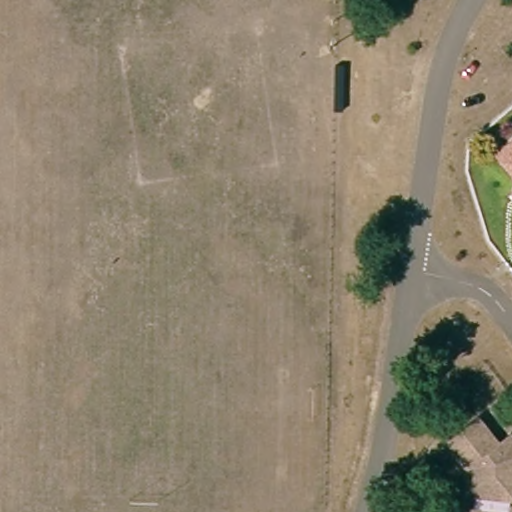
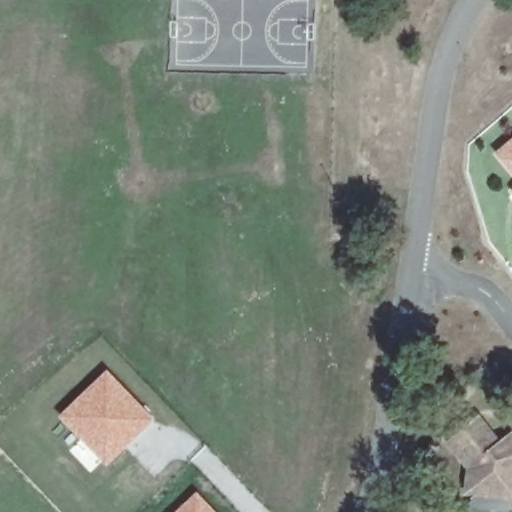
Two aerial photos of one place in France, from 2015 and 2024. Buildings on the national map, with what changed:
unchanged [(503,158),(504,148),(512,141),(512,168),(503,158)]
new [(106,368),(154,419),(105,466),(101,462),(89,472),(67,447),(77,438),(57,415),(106,368)]
unchanged [(473,503),(475,491),(477,467),(456,441),(484,418),(503,441),(512,434),(512,507),(473,503)]
new [(196,490),(216,512),(173,512),(196,490)]

